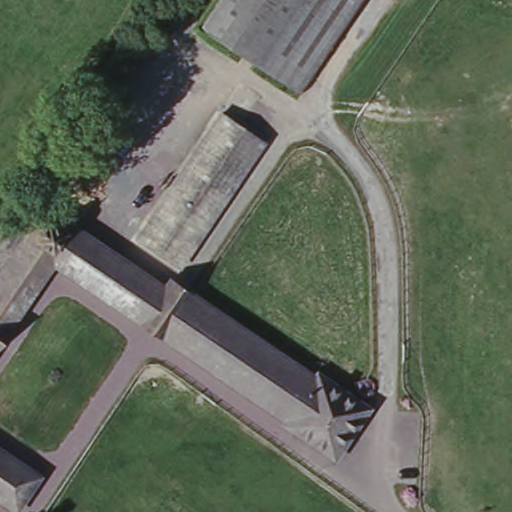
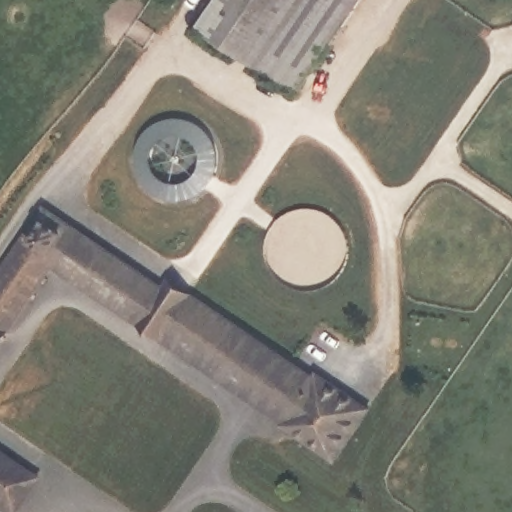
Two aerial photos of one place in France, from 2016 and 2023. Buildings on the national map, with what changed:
unchanged [(299,94),(201,23),(218,0),(365,0),(299,94)]
demolished [(269,139),(165,266),(124,233),(227,105),(269,139)]
new [(219,162),(216,170),(212,177),(207,184),(200,189),(193,193),(185,196),(176,197),(168,196),(160,193),(152,189),(146,184),(140,177),(136,170),(134,162),(133,153),(134,145),(136,137),(140,129),(146,123),(152,117),(160,113),(168,111),(176,110),(185,111),(193,113),(200,117),(207,123),(212,129),(216,137),(219,145),(220,153),(219,162)]
unchanged [(338,453),(282,415),(285,411),(58,258),(0,343),(0,266),(47,198),(314,369),(318,361),(373,399),(338,453)]
unchanged [(42,467),(20,505),(0,491),(0,436),(42,467)]

